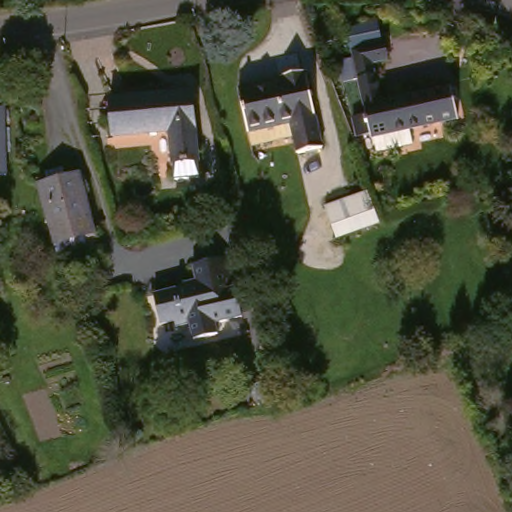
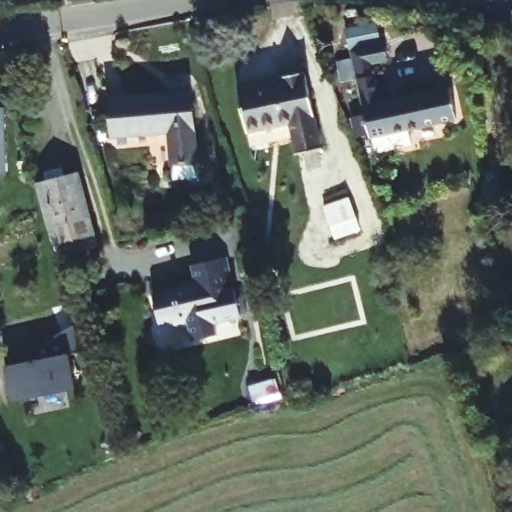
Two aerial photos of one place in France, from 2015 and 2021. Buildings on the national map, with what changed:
unchanged [(396,44),(397,59),(378,64),(389,101),(462,87),(467,121),(443,126),(443,135),(378,155),(360,54),(396,44)]
unchanged [(245,84),(316,70),(332,149),(306,155),(303,141),(258,150),(245,84)]
unchanged [(124,100),(205,95),(210,177),(187,179),(184,132),(126,136),(124,100)]
unchanged [(11,179),(0,180),(0,114),(7,114),(11,179)]
unchanged [(72,250),(66,251),(57,222),(51,202),(45,178),(55,175),(53,167),(64,164),(67,172),(77,170),(83,193),(89,214),(97,244),(72,250)]
unchanged [(382,224),(346,237),(343,230),(336,210),(372,197),(378,216),(382,224)]
unchanged [(229,253),(234,276),(227,277),(230,287),(236,285),(243,313),(217,320),(220,332),(195,337),(191,321),(177,323),(176,318),(162,322),(155,292),(198,282),(193,262),(229,253)]
new [(36,347),(66,335),(81,328),(89,353),(71,354),(76,390),(10,397),(6,362),(37,358),(36,347)]
unchanged [(254,365),(281,358),(285,373),(258,381),(254,365)]

